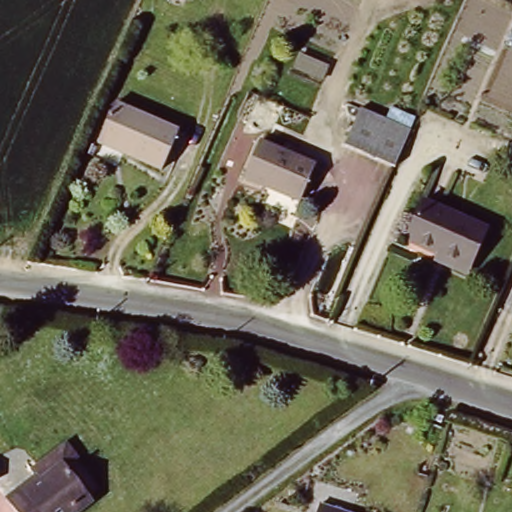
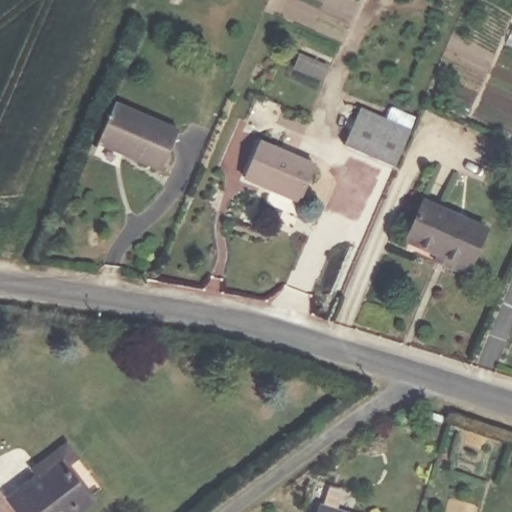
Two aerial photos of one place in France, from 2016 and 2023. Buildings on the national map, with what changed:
unchanged [(121,150),(123,145),(102,137),(115,104),(177,129),(162,167),(121,150)]
unchanged [(389,169),(340,148),(356,110),(407,129),(389,169)]
unchanged [(295,198),(266,185),(263,190),(240,182),(255,143),(309,165),(311,166),(297,198),(295,198)]
unchanged [(435,256),(438,248),(409,238),(423,198),(481,222),(469,253),(463,267),(435,256)]
unchanged [(41,479),(35,471),(67,448),(78,462),(68,470),(94,505),(86,512),(39,512),(24,492),(41,479)]
unchanged [(331,512),(318,512),(320,508),(331,512)]

